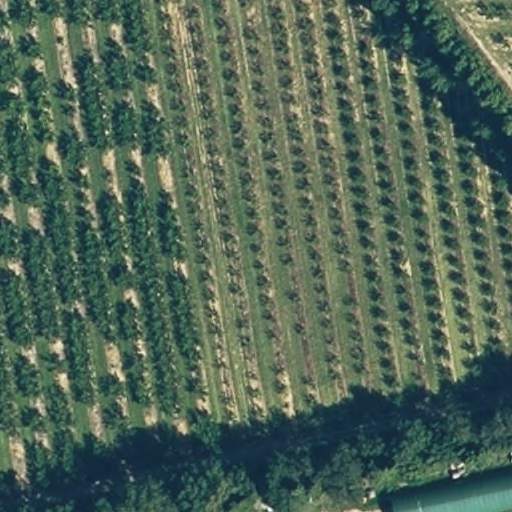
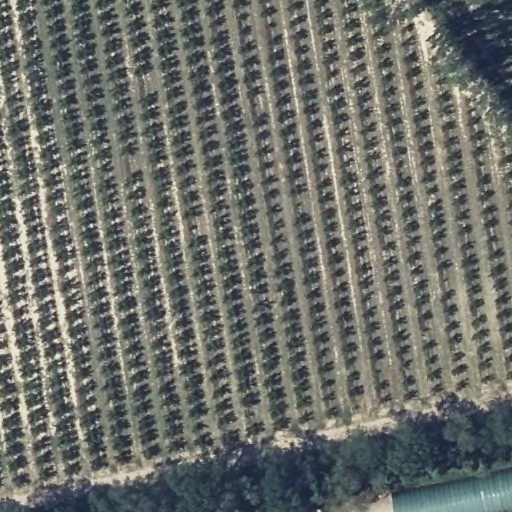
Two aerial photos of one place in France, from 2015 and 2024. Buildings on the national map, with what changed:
unchanged [(512,470),(512,512),(395,512),(390,495),(512,470)]

